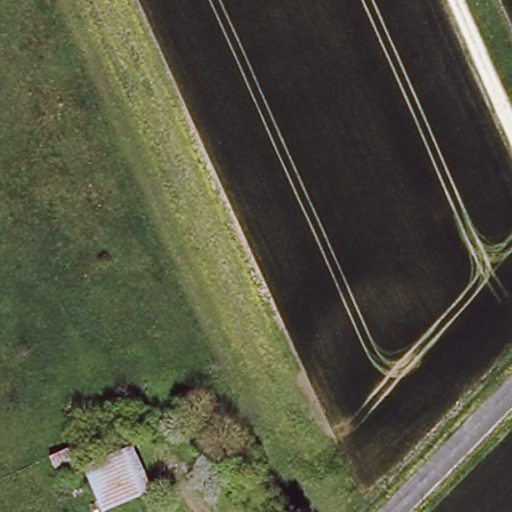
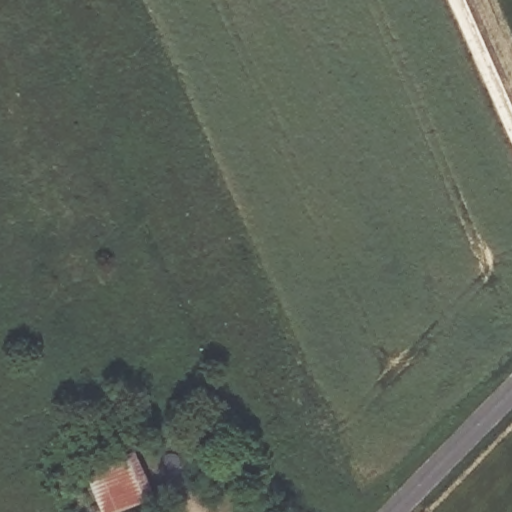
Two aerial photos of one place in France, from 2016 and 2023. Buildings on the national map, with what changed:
unchanged [(101,508),(86,466),(134,447),(152,489),(162,512),(114,512),(110,505),(101,508)]

